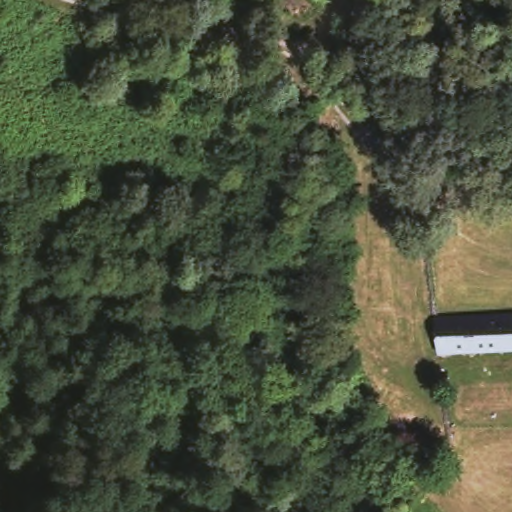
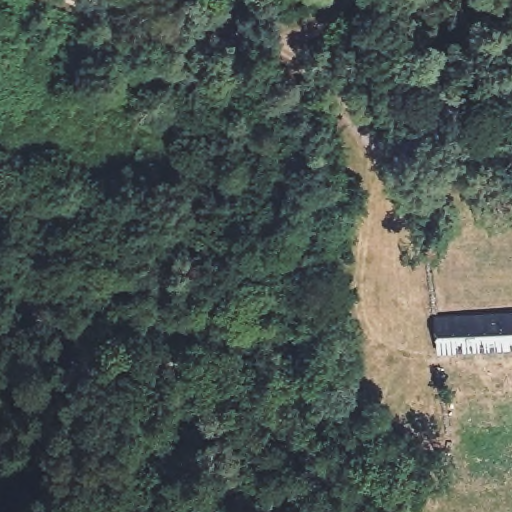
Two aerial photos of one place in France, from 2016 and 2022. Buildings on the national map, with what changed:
unchanged [(512,314),(512,357),(479,357),(435,357),(435,316),(512,314)]

